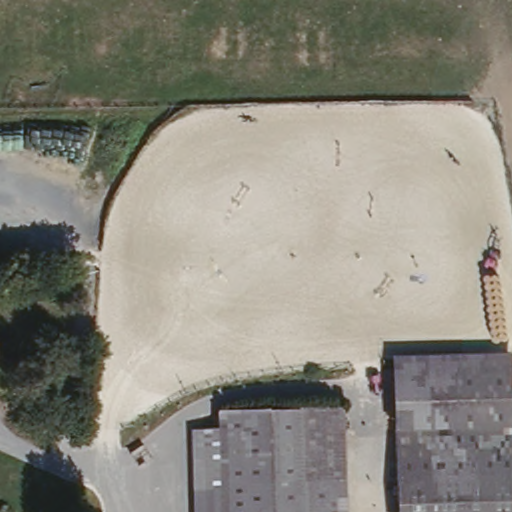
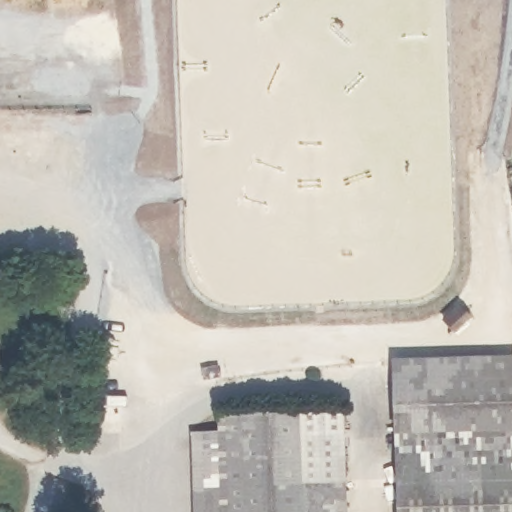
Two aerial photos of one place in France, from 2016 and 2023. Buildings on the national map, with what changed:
unchanged [(1,362),(0,362),(0,354),(1,362)]
unchanged [(390,357),(512,354),(512,512),(395,512),(391,432),(390,357)]
unchanged [(195,512),(192,483),(217,482),(219,421),(344,412),(347,512),(195,512)]

